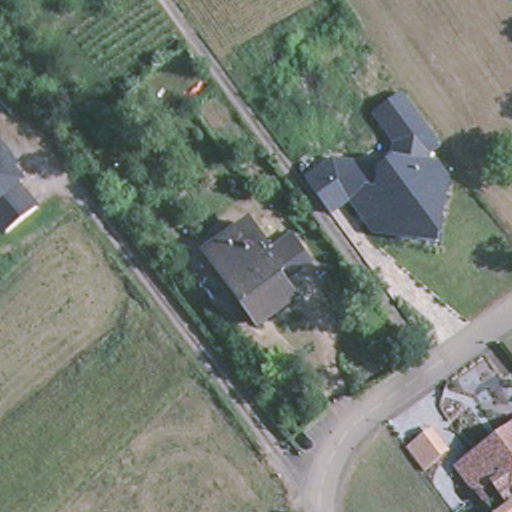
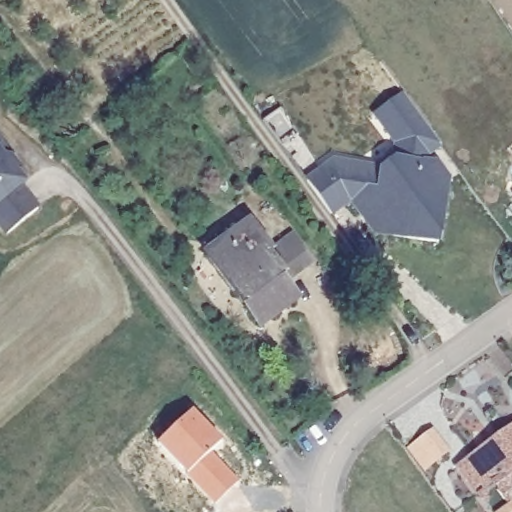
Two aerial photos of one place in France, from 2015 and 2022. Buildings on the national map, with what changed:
unchanged [(309,174),(324,164),(336,155),(386,162),(388,161),(396,155),(399,136),(379,108),(408,87),(444,137),(429,147),(428,157),(439,157),(450,172),(440,234),(439,235),(381,226),(384,208),(388,205),(378,192),(373,195),(354,191),(347,196),(333,207),(309,174)]
unchanged [(20,173),(30,184),(24,189),(39,206),(5,234),(0,227),(0,137),(25,167),(20,173)]
unchanged [(286,295),(251,321),(198,251),(238,221),(261,248),(275,238),(283,232),(301,257),(294,263),(276,276),(273,278),(286,295)]
new [(189,410),(223,445),(215,452),(238,479),(213,503),(158,446),(189,410)]
unchanged [(508,498),(490,473),(476,484),(457,459),(487,436),(504,423),(512,417),(512,495),(508,498)]
new [(450,449),(423,471),(407,449),(434,429),(450,449)]
unchanged [(508,498),(512,495),(512,512),(495,512),(476,484),(490,473),(508,498)]

